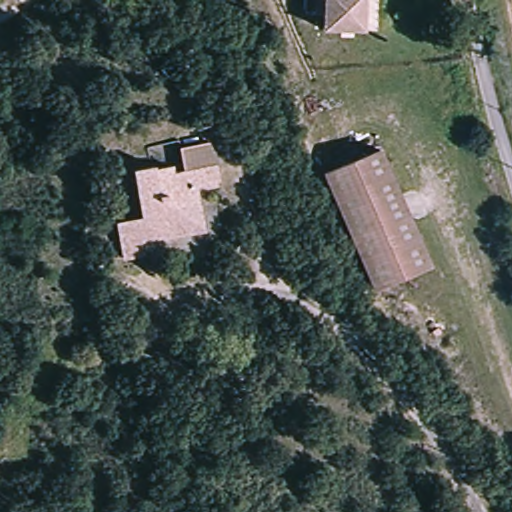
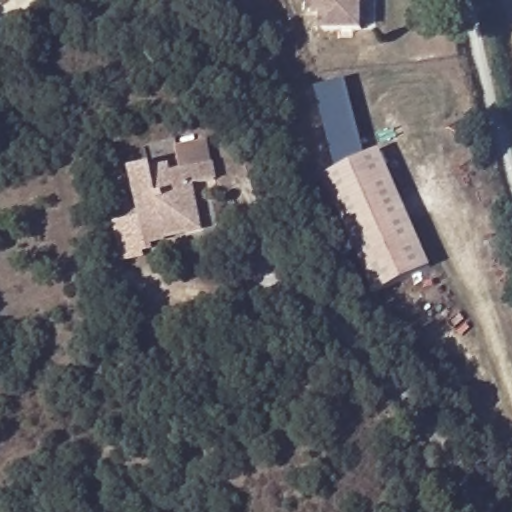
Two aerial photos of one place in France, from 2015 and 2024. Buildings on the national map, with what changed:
unchanged [(318,35),(318,20),(302,19),(303,0),(357,0),(357,35),(318,35)]
new [(336,169),(315,87),(345,80),(366,155),(336,169)]
unchanged [(184,237),(165,241),(165,245),(150,247),(151,252),(142,254),(142,257),(143,260),(121,265),(121,261),(114,228),(140,222),(130,175),(152,171),(152,174),(168,171),(170,177),(182,175),(178,152),(209,146),(213,169),(217,185),(192,190),(199,222),(201,234),(184,237)]
unchanged [(432,268),(377,292),(324,174),(380,150),(432,268)]

